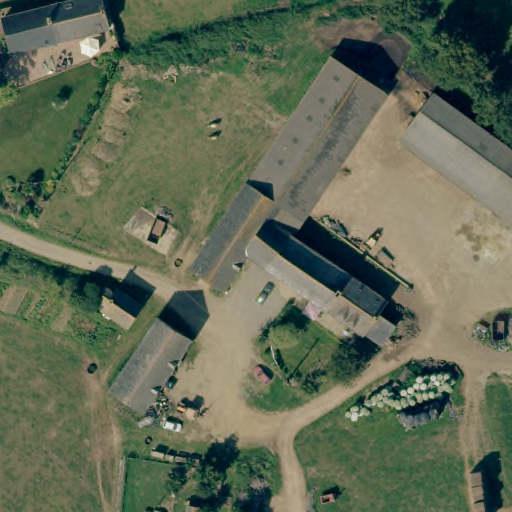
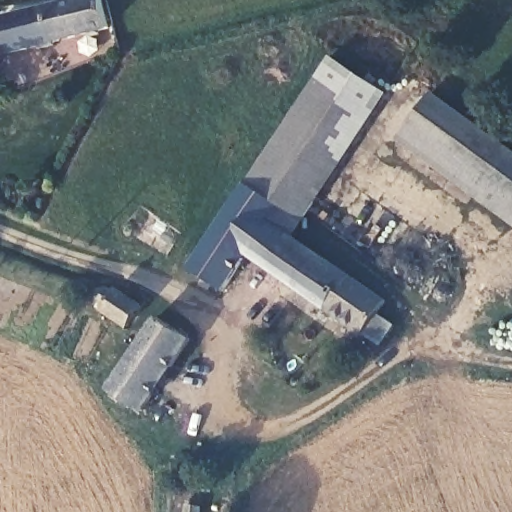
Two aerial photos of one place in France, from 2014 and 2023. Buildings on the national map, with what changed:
unchanged [(113,29),(10,53),(2,20),(87,0),(107,0),(113,29)]
unchanged [(268,219),(277,206),(246,184),(333,53),(378,84),(281,228),(268,219)]
unchanged [(397,139),(425,103),(512,167),(512,224),(397,139)]
unchanged [(216,291),(183,268),(246,184),(277,206),(268,219),(281,228),(386,299),(362,334),(242,255),(216,291)]
unchanged [(95,314),(95,308),(90,303),(92,292),(97,293),(102,294),(105,298),(106,299),(109,295),(134,313),(119,332),(95,314)]
unchanged [(145,408),(110,384),(164,314),(196,338),(145,408)]

